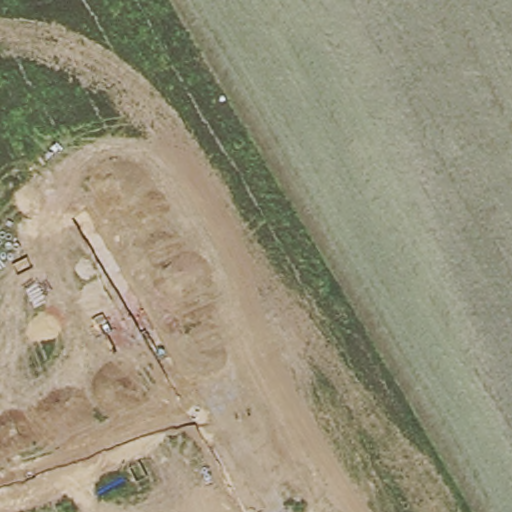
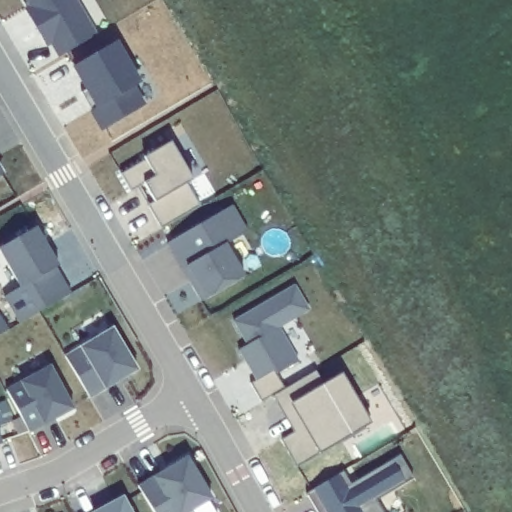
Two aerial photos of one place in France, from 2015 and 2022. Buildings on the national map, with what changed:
new [(61,60),(52,46),(49,48),(32,21),(27,12),(32,10),(26,0),(74,0),(97,39),(61,60)]
new [(88,112),(95,108),(72,68),(119,41),(142,82),(132,87),(143,106),(99,132),(88,112)]
new [(137,187),(131,191),(121,173),(145,159),(143,156),(170,141),(192,179),(185,183),(200,205),(160,229),(137,187)]
new [(4,174),(0,176),(0,167),(4,174)]
new [(234,210),(249,236),(235,244),(227,249),(245,280),(202,305),(190,285),(195,282),(188,271),(184,273),(168,247),(220,217),(234,210)]
new [(4,297),(20,287),(0,253),(0,250),(39,227),(62,265),(56,268),(70,292),(19,322),(4,297)]
new [(295,290),(310,315),(279,332),(299,367),(277,379),(285,393),(262,407),(250,387),(257,384),(240,355),(247,350),(235,326),(295,290)]
new [(91,397),(65,356),(80,347),(114,327),(137,369),(105,390),(91,397)]
new [(30,436),(7,393),(51,370),(74,412),(56,422),(45,427),(30,436)]
new [(296,466),(281,440),(294,433),(277,404),(290,396),(285,390),(319,371),(325,383),(342,373),(370,422),(320,452),(296,466)]
new [(2,445),(0,446),(0,438),(2,445)]
unchanged [(345,476),(352,489),(401,460),(415,482),(378,505),(382,512),(317,512),(308,497),(345,476)]
new [(189,462),(213,503),(198,512),(152,512),(140,491),(189,462)]
new [(107,511),(125,501),(131,512),(105,512),(107,511)]

